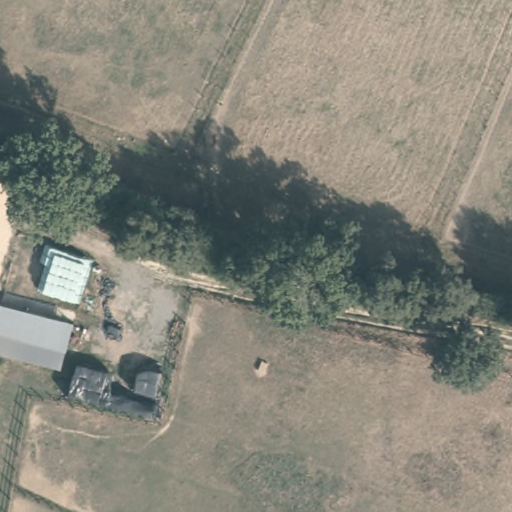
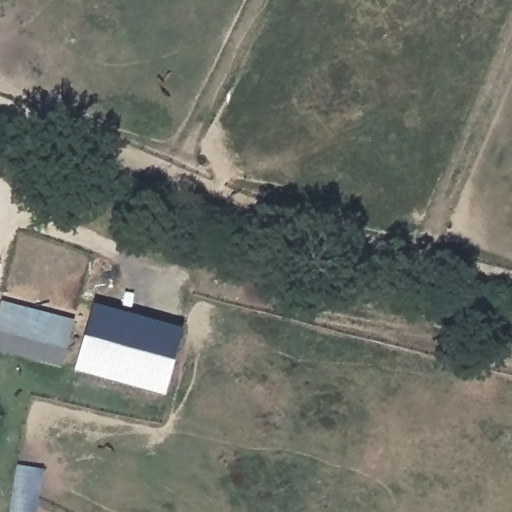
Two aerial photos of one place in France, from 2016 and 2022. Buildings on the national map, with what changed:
unchanged [(62,364),(0,349),(0,301),(73,319),(62,364)]
new [(166,396),(72,371),(91,304),(181,329),(166,396)]
new [(7,512),(14,466),(43,469),(38,512),(7,512)]

